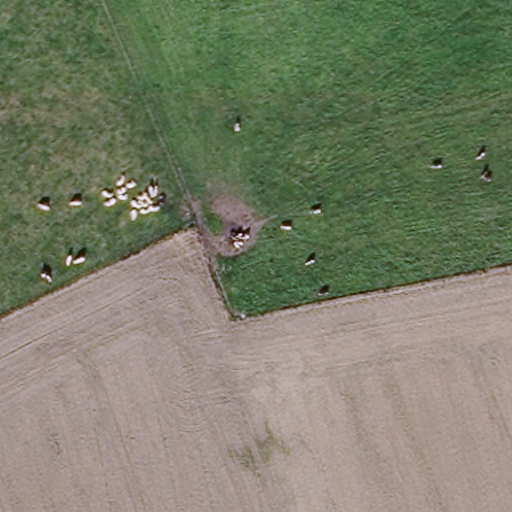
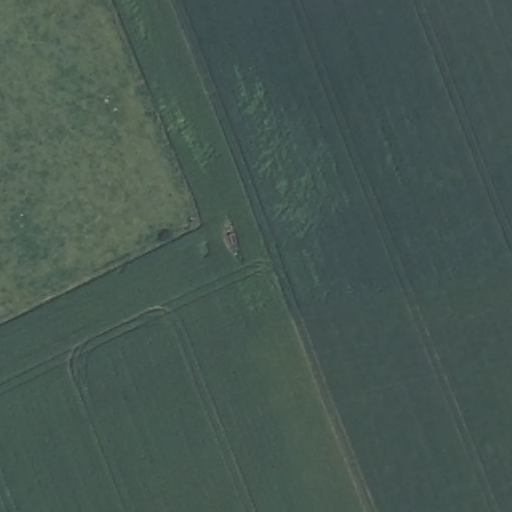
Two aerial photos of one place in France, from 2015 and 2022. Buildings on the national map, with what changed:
[]

